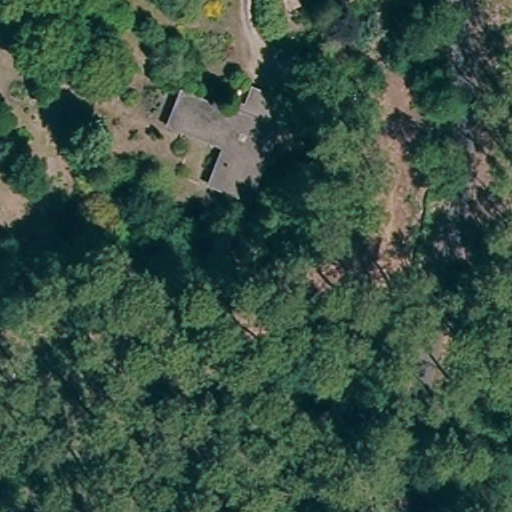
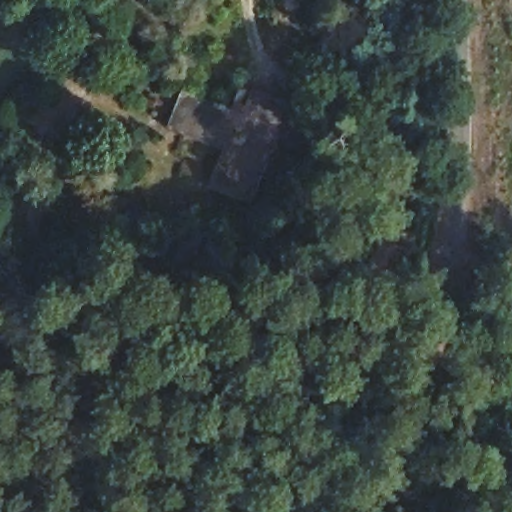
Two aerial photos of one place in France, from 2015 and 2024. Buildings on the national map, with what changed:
unchanged [(239,117),(242,109),(248,92),(282,102),(274,129),(239,117)]
unchanged [(163,145),(166,137),(177,101),(207,110),(209,101),(242,109),(239,117),(274,129),(249,209),(207,196),(212,174),(216,162),(163,145)]

